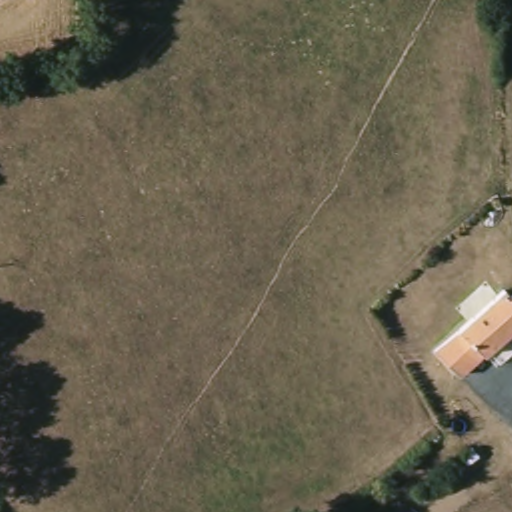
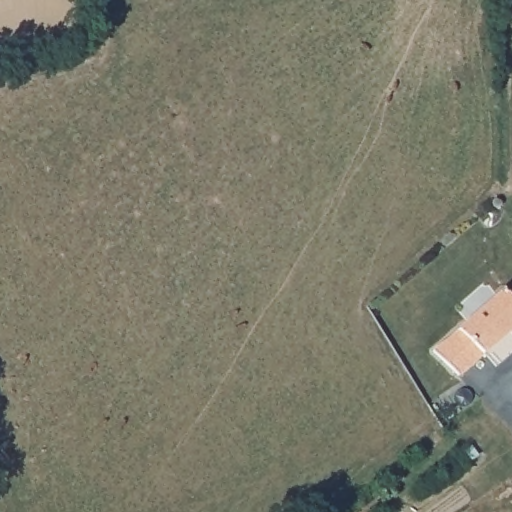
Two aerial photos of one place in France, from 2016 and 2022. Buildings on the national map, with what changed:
unchanged [(431,357),(438,350),(435,343),(457,322),(447,310),(468,294),(480,307),(500,292),(506,296),(512,292),(512,333),(452,384),(431,357)]

